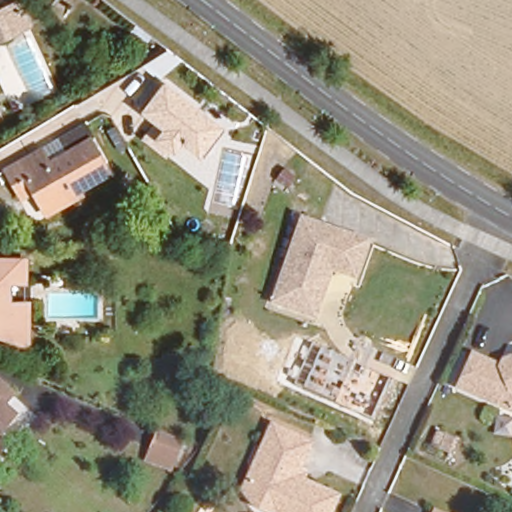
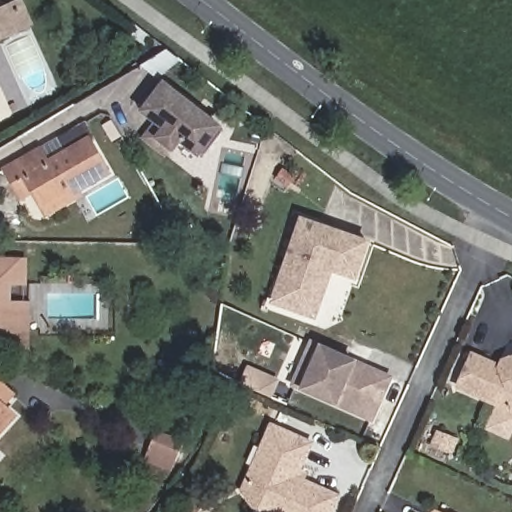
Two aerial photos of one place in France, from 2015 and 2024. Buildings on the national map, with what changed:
unchanged [(11,7),(22,34),(0,43),(0,11),(11,7)]
unchanged [(221,132),(199,158),(176,138),(169,148),(154,136),(162,127),(141,109),(162,83),(221,132)]
unchanged [(1,170),(8,166),(17,160),(33,151),(51,140),(79,124),(87,139),(83,142),(101,174),(70,191),(37,209),(28,191),(16,197),(1,170)]
unchanged [(279,160),(261,167),(255,152),(273,145),(279,160)]
unchanged [(298,313),(267,303),(296,218),(362,241),(350,277),(326,269),(310,317),(298,313)]
unchanged [(18,251),(19,272),(2,272),(2,295),(20,296),(20,335),(0,327),(0,251),(18,251)]
new [(371,423),(336,405),(298,389),(288,386),(309,340),(322,344),(358,360),(393,377),(371,423)]
unchanged [(512,403),(507,405),(486,396),(475,391),(465,387),(462,385),(465,378),(469,368),(473,358),(477,349),(512,364),(512,403)]
unchanged [(11,382),(1,392),(12,402),(0,414),(0,371),(11,382)]
unchanged [(145,449),(148,441),(156,421),(182,432),(174,451),(171,459),(145,449)]
unchanged [(251,468),(263,440),(271,422),(310,439),(295,474),(337,492),(328,512),(276,512),(255,503),(243,487),(251,468)]
unchanged [(458,432),(451,447),(436,440),(443,425),(458,432)]

